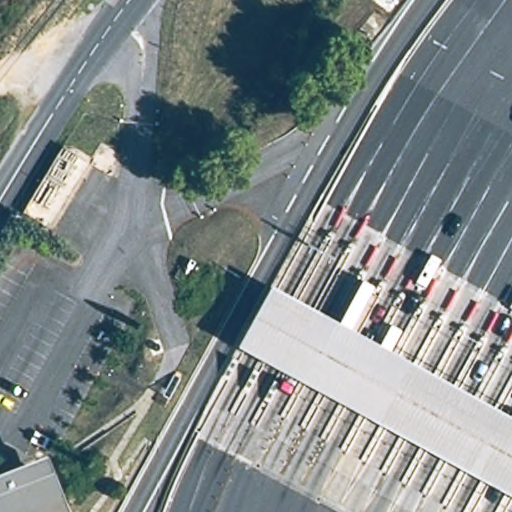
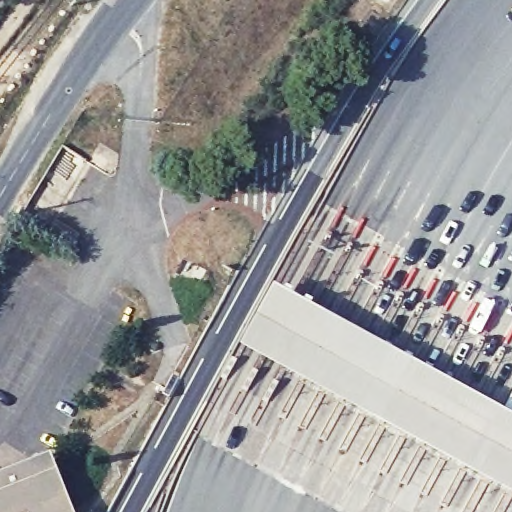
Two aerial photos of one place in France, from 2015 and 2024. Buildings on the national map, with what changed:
unchanged [(512,418),(512,498),(237,349),(271,287),(512,418)]
unchanged [(0,479),(41,463),(61,512),(0,512),(0,479)]

